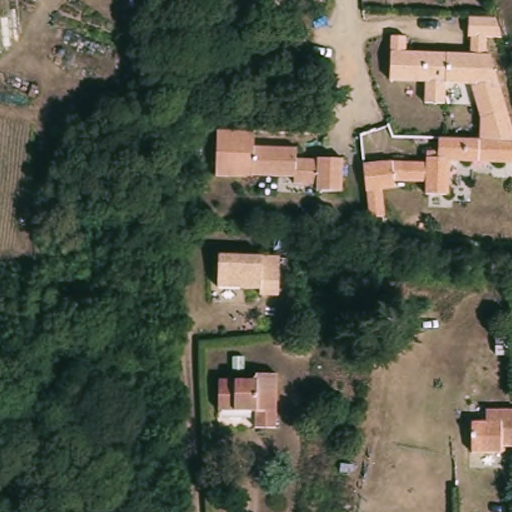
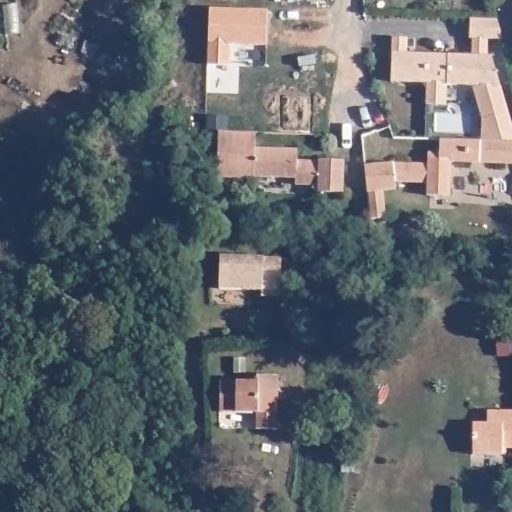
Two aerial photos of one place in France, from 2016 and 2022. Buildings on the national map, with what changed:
new [(208,3),(267,5),(265,40),(228,38),(228,61),(206,60),(208,3)]
unchanged [(505,39),(488,38),(488,54),(493,54),(512,126),(512,142),(484,142),(479,126),(484,125),(472,84),(448,82),(448,103),(426,102),(426,81),(389,80),(389,35),(408,36),(407,50),(469,51),(469,15),(497,17),(505,39)]
unchanged [(229,128),(259,129),(258,145),(302,147),(301,158),(322,159),(323,157),(348,158),(346,191),(321,190),(321,183),(298,182),(299,176),(258,174),(257,176),(220,174),(222,127),(229,128)]
unchanged [(432,163),(432,154),(443,155),(444,141),(512,142),(512,165),(454,163),(454,194),(434,194),(431,194),(431,181),(397,180),(395,161),(432,163)]
unchanged [(397,179),(399,187),(382,190),(386,216),(371,217),(364,163),(394,159),(395,161),(397,179)]
unchanged [(258,295),(259,289),(217,284),(221,251),(282,259),(276,298),(258,295)]
unchanged [(258,379),(258,390),(276,392),(273,428),(255,426),(256,411),(219,407),(221,375),(258,379)]
unchanged [(473,421),(481,421),(486,422),(487,408),(512,408),(512,445),(503,447),(503,452),(481,453),(473,453),(473,421)]

